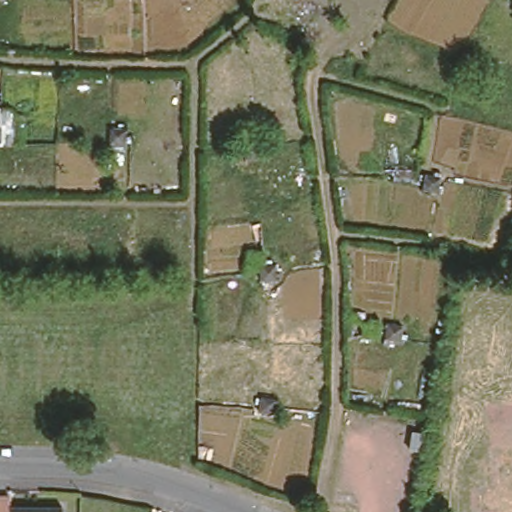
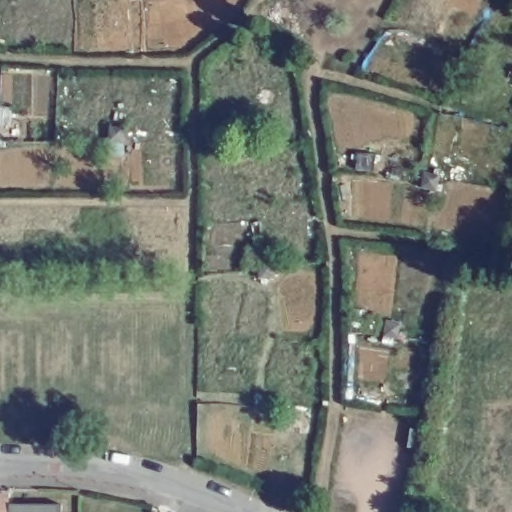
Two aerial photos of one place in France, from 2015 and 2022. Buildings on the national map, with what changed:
unchanged [(0,512),(0,510),(2,510),(3,499),(55,501),(55,512),(0,512)]

